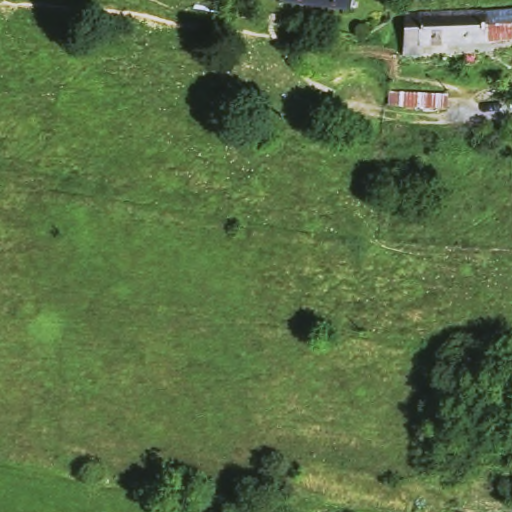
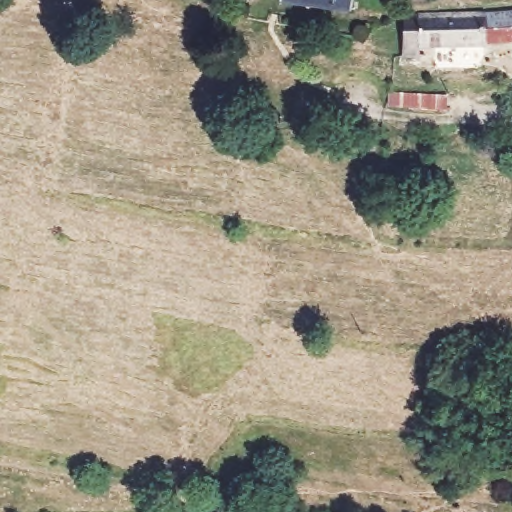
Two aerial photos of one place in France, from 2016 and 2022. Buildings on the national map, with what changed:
unchanged [(350,11),(277,3),(277,0),(351,0),(350,11)]
unchanged [(512,43),(400,50),(397,7),(512,4),(512,43)]

